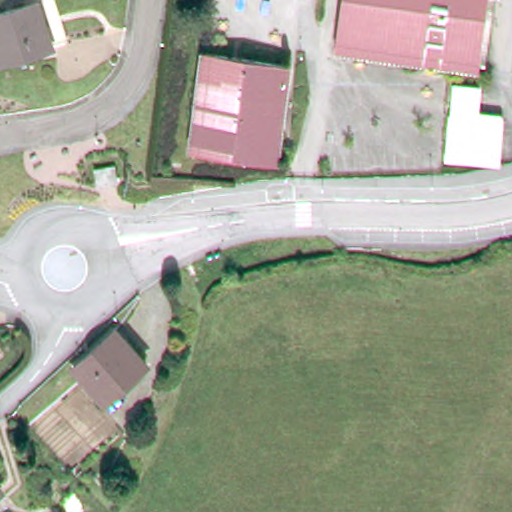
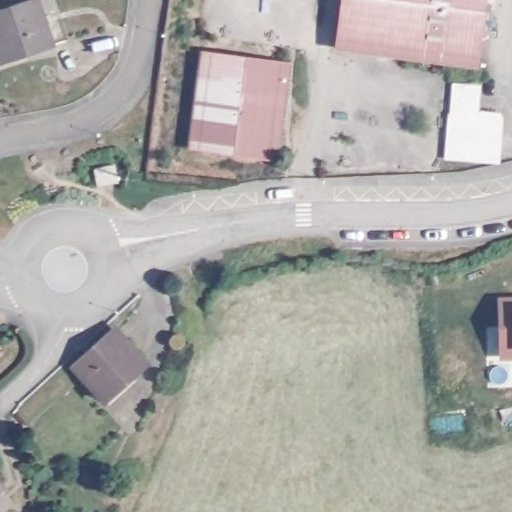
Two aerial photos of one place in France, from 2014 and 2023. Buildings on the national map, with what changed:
unchanged [(340,46),(346,0),(489,0),(481,64),(340,46)]
unchanged [(2,64),(0,58),(0,16),(38,3),(52,46),(2,64)]
unchanged [(277,161),(197,151),(209,56),(291,66),(277,161)]
unchanged [(450,154),(452,131),(454,115),(456,89),(505,95),(502,119),(501,136),(499,159),(450,154)]
unchanged [(122,182),(102,186),(100,171),(119,166),(122,182)]
new [(500,359),(498,306),(512,305),(512,359),(500,359)]
unchanged [(147,367),(107,404),(77,371),(116,334),(147,367)]

